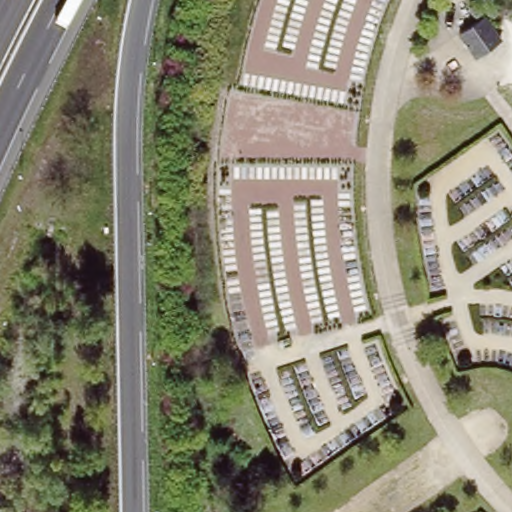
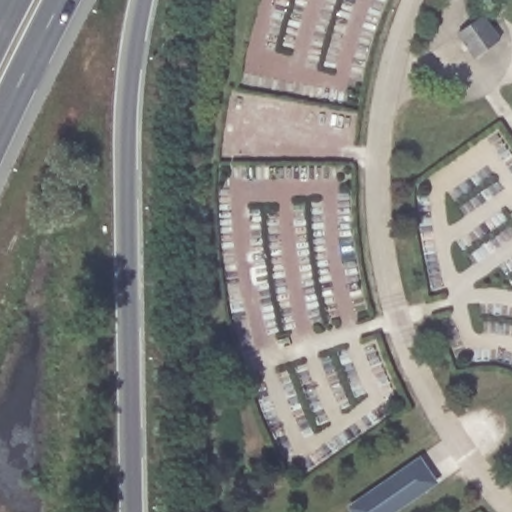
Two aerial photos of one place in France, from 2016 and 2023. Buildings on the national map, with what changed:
unchanged [(477,56),(460,32),(485,14),(502,38),(477,56)]
new [(353,512),(348,505),(420,456),(439,482),(397,512),(353,512)]

